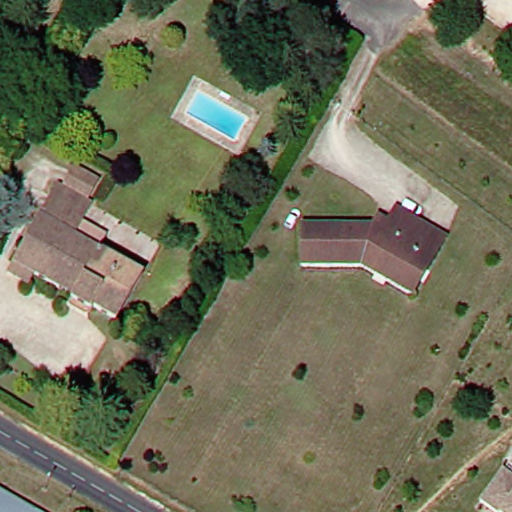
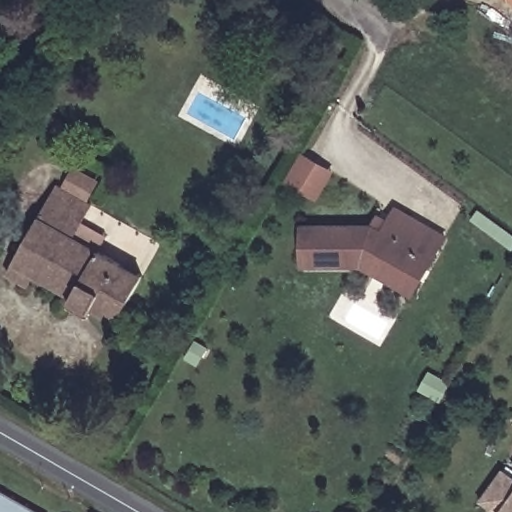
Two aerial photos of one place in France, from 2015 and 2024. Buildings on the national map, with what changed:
new [(284,184),(303,153),(335,172),(317,203),(284,184)]
unchanged [(77,303),(80,298),(40,276),(33,287),(12,276),(18,265),(62,186),(68,189),(80,169),(103,182),(92,202),(96,204),(86,222),(112,237),(104,252),(148,276),(122,322),(99,309),(97,314),(77,303)]
unchanged [(368,265),(308,269),(305,227),(378,223),(388,229),(402,206),(451,234),(437,258),(417,294),(368,265)]
unchanged [(478,503),(502,470),(512,477),(512,512),(491,512),(478,503)]
unchanged [(0,492),(35,512),(0,512),(0,492)]

